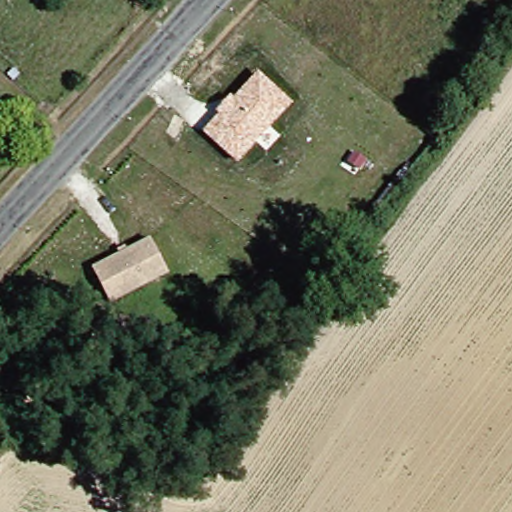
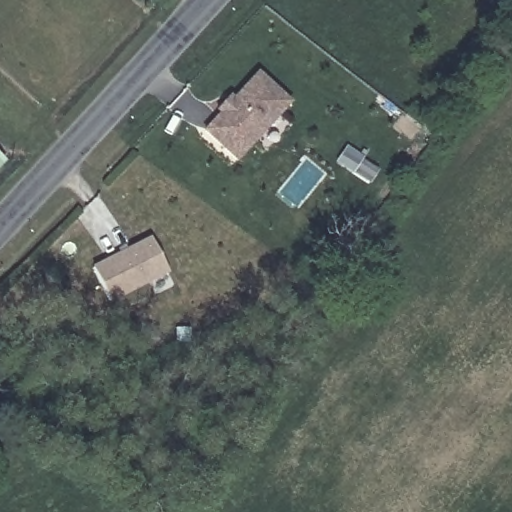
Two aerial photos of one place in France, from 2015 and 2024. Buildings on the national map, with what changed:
unchanged [(293,102),(236,165),(203,132),(217,114),(215,111),(231,94),(233,96),(258,70),(293,102)]
unchanged [(13,145),(0,158),(0,133),(13,145)]
unchanged [(170,275),(109,305),(92,270),(151,239),(170,275)]

